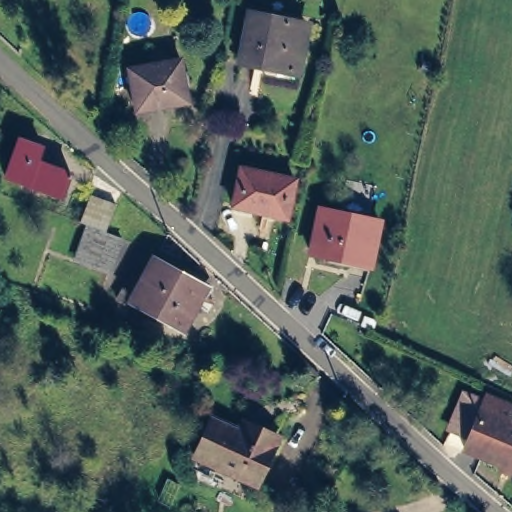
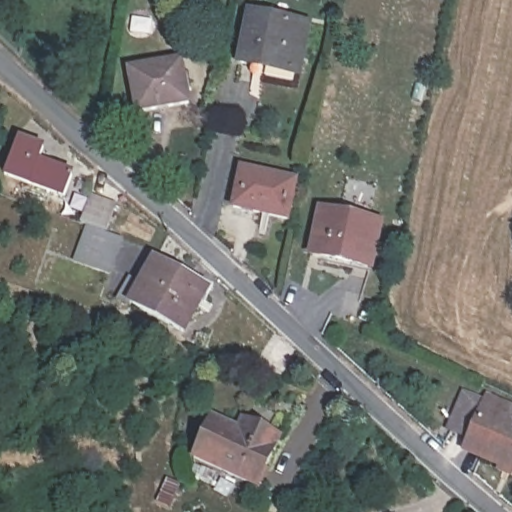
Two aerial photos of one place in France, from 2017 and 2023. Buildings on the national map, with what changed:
unchanged [(252,13),(307,25),(297,72),(242,60),(252,13)]
unchanged [(129,70),(180,63),(187,106),(135,113),(129,70)]
unchanged [(47,154),(42,166),(76,179),(67,201),(8,178),(22,144),(47,154)]
unchanged [(297,182),(288,217),(235,205),(242,169),(297,182)]
unchanged [(114,272),(81,260),(90,229),(79,225),(87,198),(114,207),(105,234),(125,241),(114,272)]
unchanged [(347,265),(317,260),(324,216),(356,221),(347,265)]
unchanged [(382,227),(375,271),(347,265),(356,221),(382,227)]
unchanged [(141,277),(153,284),(164,263),(213,288),(191,331),(130,299),(141,277)]
unchanged [(504,473),(506,469),(471,454),(495,399),(512,407),(512,477),(504,473)]
unchanged [(245,437),(250,428),(284,447),(259,494),(199,462),(220,424),(245,437)]

